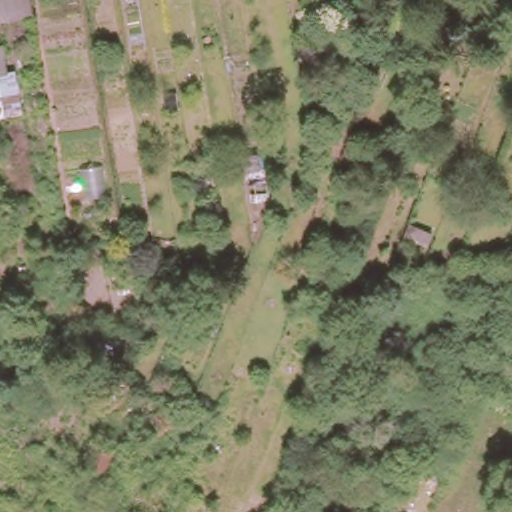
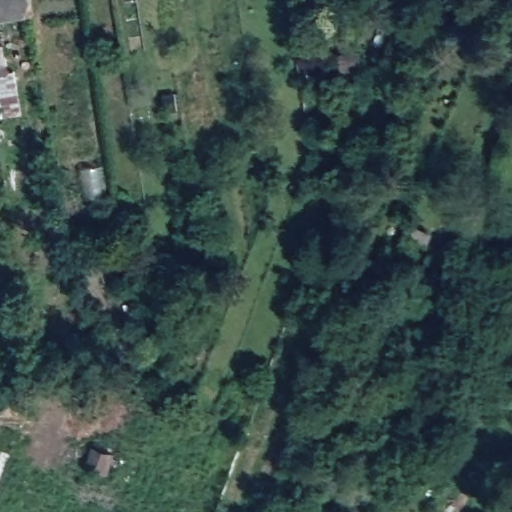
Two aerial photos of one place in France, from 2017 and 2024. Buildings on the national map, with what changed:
unchanged [(18,17),(5,20),(0,21),(0,0),(29,0),(31,16),(18,17)]
unchanged [(453,27),(464,0),(471,3),(461,30),(453,27)]
unchanged [(5,67),(13,66),(19,113),(0,115),(0,41),(2,41),(5,67)]
unchanged [(431,231),(424,246),(401,237),(408,222),(431,231)]
unchanged [(22,307),(5,307),(3,282),(20,281),(22,307)]
unchanged [(118,348),(98,351),(95,328),(115,326),(118,348)]

